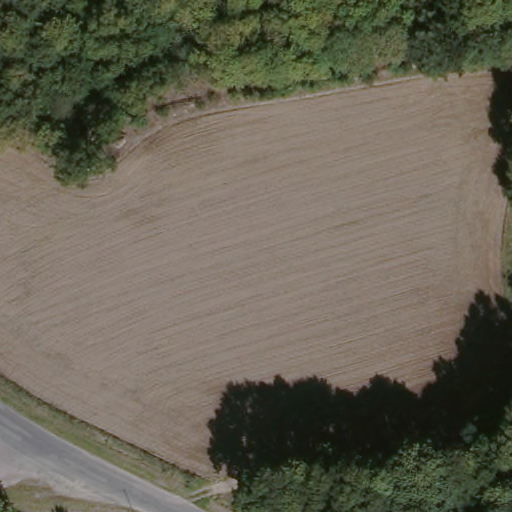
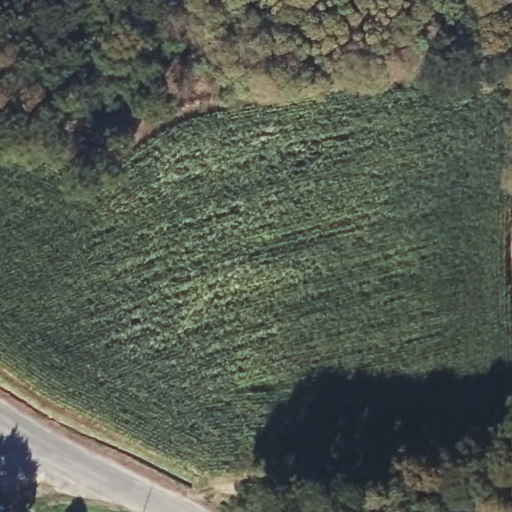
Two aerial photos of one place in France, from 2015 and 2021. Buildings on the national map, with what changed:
[]

